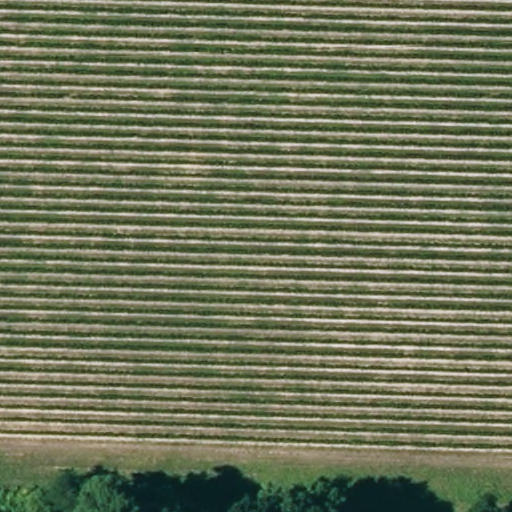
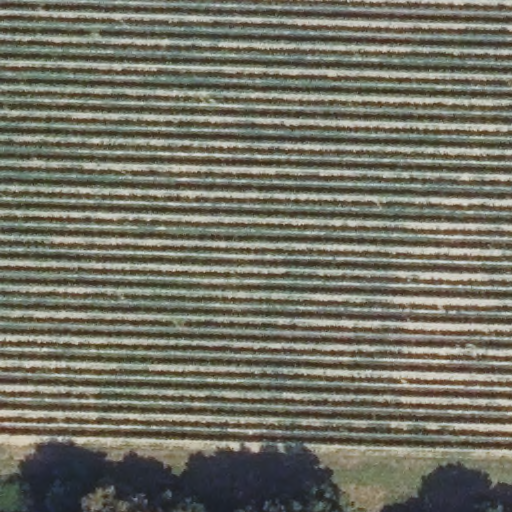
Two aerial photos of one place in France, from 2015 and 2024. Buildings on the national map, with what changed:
[]

